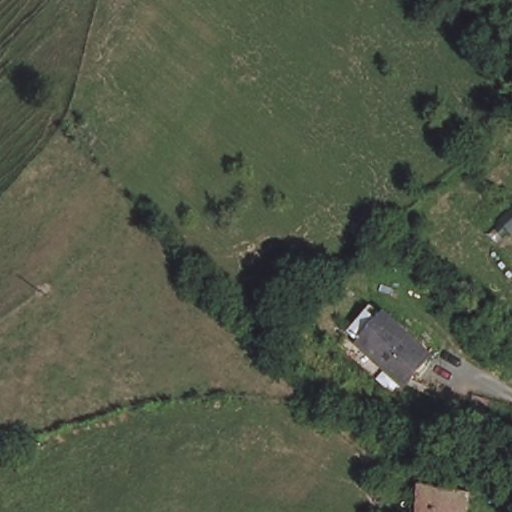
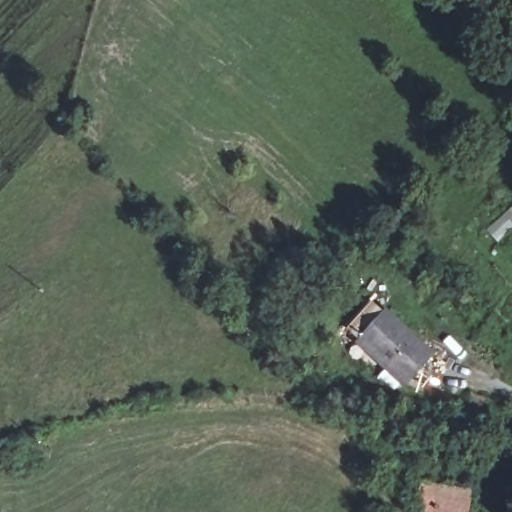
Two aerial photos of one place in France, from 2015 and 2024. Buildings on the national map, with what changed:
unchanged [(416,396),(377,352),(360,333),(387,307),(405,326),(445,370),(416,396)]
unchanged [(471,512),(424,512),(436,465),(479,478),(471,512)]

